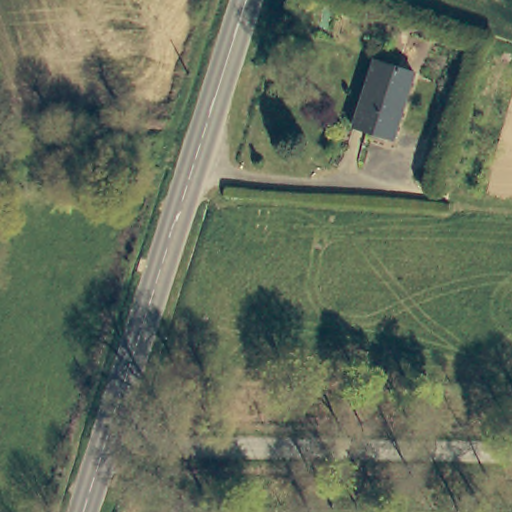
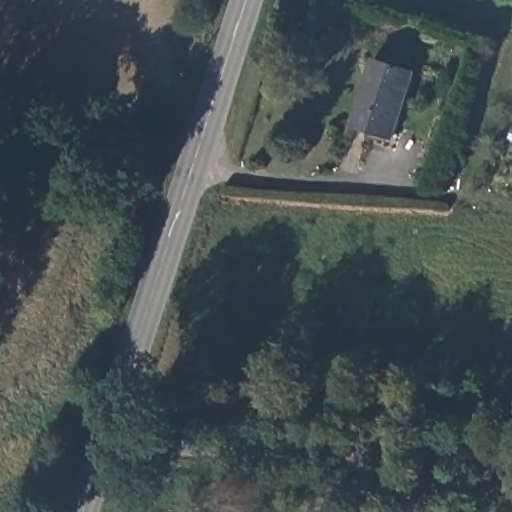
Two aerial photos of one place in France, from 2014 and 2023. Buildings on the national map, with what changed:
unchanged [(371,61),(411,75),(390,139),(350,126),(371,61)]

